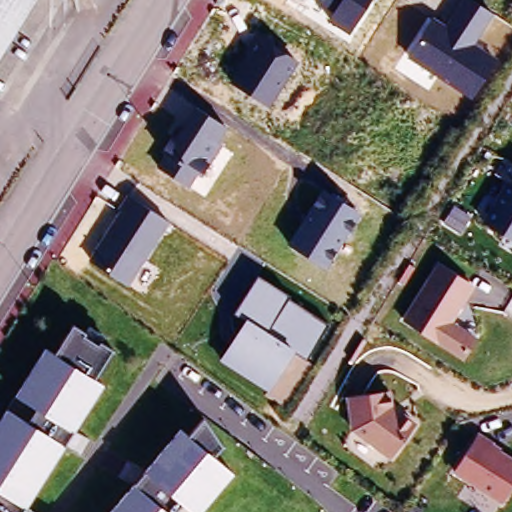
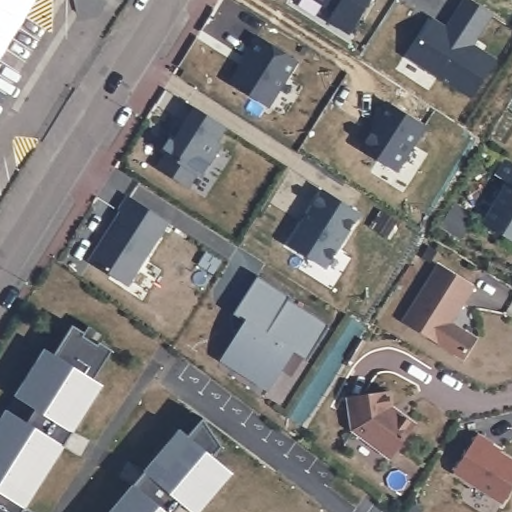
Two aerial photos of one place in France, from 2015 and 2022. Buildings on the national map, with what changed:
unchanged [(15,0),(0,24),(0,0),(15,0)]
unchanged [(15,0),(35,0),(0,55),(0,24),(15,0)]
unchanged [(329,23),(336,13),(315,0),(370,0),(350,34),(329,23)]
unchanged [(443,27),(459,0),(474,0),(494,13),(474,47),(493,59),(469,96),(408,56),(432,20),(443,27)]
unchanged [(231,84),(261,39),(299,60),(270,108),(231,84)]
new [(374,128),(371,124),(387,101),(426,128),(399,173),(361,148),(374,128)]
unchanged [(190,106),(225,129),(218,141),(221,145),(201,178),(198,177),(191,189),(156,168),(166,153),(161,150),(190,106)]
unchanged [(512,181),(499,173),(508,159),(512,162),(512,239),(486,223),(512,181)]
unchanged [(361,215),(326,268),(288,245),(321,192),(361,215)]
unchanged [(170,224),(129,287),(89,261),(129,200),(170,224)]
unchanged [(440,266),(474,287),(456,318),(481,334),(465,359),(406,322),(440,266)]
unchanged [(329,322),(306,358),(293,350),(268,390),(218,361),(243,324),(233,318),(259,277),(329,322)]
unchanged [(45,348),(56,355),(73,327),(83,332),(88,324),(107,335),(101,344),(110,350),(93,378),(104,385),(26,509),(32,512),(0,512),(0,419),(45,348)]
unchanged [(388,459),(351,431),(345,399),(386,393),(389,408),(397,413),(413,425),(388,459)]
unchanged [(181,429),(191,437),(204,420),(221,445),(213,455),(234,472),(200,512),(111,512),(181,429)]
unchanged [(479,436),(494,445),(492,448),(512,461),(512,488),(504,502),(456,473),(479,436)]

